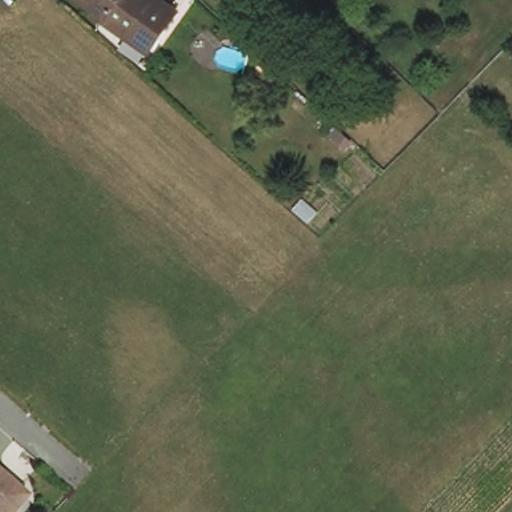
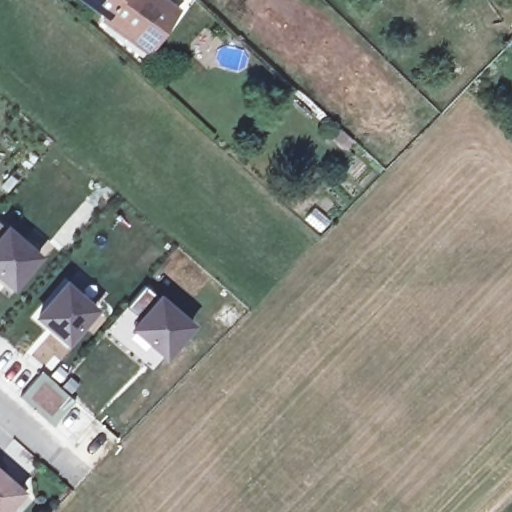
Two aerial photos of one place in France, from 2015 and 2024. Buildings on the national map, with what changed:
unchanged [(130,30),(103,11),(106,7),(97,0),(173,0),(177,2),(159,28),(147,41),(130,30)]
new [(3,230),(7,225),(44,257),(15,291),(0,279),(0,226),(3,230)]
new [(65,285),(94,310),(66,342),(37,319),(65,285)]
new [(144,285),(155,300),(159,295),(197,324),(167,359),(130,328),(137,321),(125,307),(144,285)]
new [(40,370),(74,400),(51,425),(18,395),(40,370)]
unchanged [(20,487),(0,508),(0,470),(20,487)]

